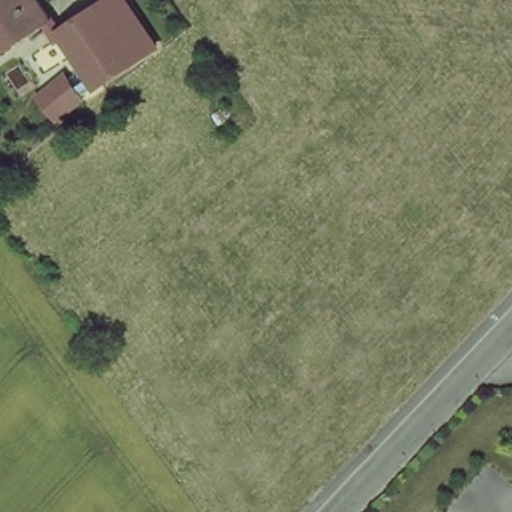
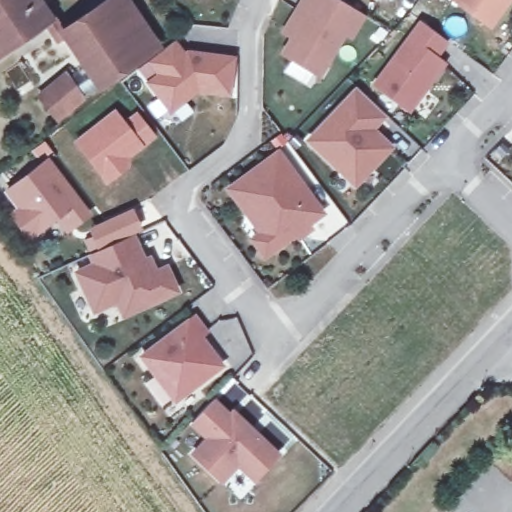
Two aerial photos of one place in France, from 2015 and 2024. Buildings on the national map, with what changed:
unchanged [(0,55),(0,0),(34,0),(48,19),(0,55)]
unchanged [(99,88),(58,34),(105,0),(133,0),(152,23),(161,43),(137,64),(99,88)]
new [(354,31),(348,28),(322,70),(286,49),(296,33),(289,29),(306,0),(349,0),(366,10),(354,31)]
new [(465,0),(508,0),(493,21),(465,0)]
new [(449,35),(438,53),(446,59),(413,106),(377,80),(424,17),(449,35)]
new [(230,94),(198,91),(169,114),(146,82),(156,74),(146,61),(173,40),(184,51),(188,50),(234,56),(230,94)]
unchanged [(61,74),(76,94),(50,113),(35,93),(61,74)]
new [(355,187),(304,140),(356,86),(386,116),(374,129),(393,146),(355,187)]
new [(106,183),(73,140),(113,109),(124,122),(136,111),(156,136),(129,158),(128,166),(106,183)]
new [(326,210),(311,222),(314,226),(303,234),(299,230),(269,253),(258,238),(268,231),(234,184),(283,149),(326,210)]
new [(56,219),(28,239),(8,214),(15,207),(3,192),(48,157),(91,214),(67,233),(56,219)]
new [(136,232),(148,257),(153,255),(159,269),(171,264),(181,289),(128,312),(120,297),(98,307),(82,269),(99,261),(93,250),(136,232)]
new [(198,314),(208,328),(203,334),(224,363),(178,398),(146,353),(198,314)]
new [(233,413),(236,409),(280,451),(257,477),(241,461),(225,478),(196,451),(211,435),(194,418),(216,397),(233,413)]

